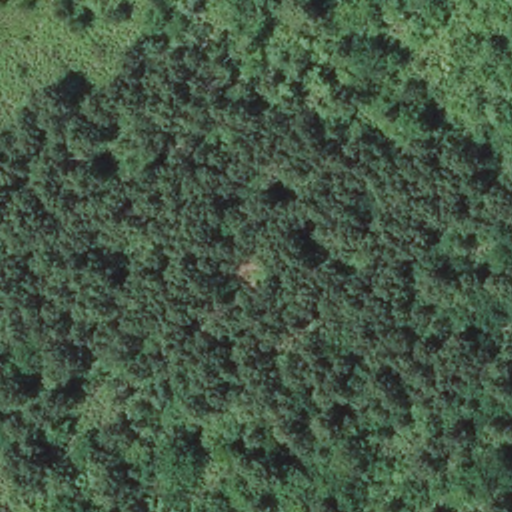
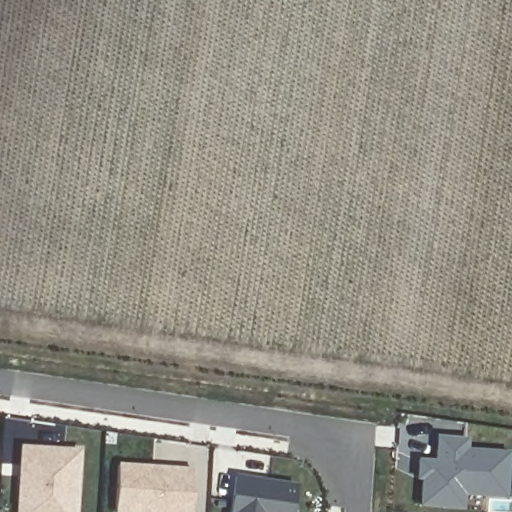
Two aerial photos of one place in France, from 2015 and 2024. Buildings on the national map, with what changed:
new [(441,507),(416,504),(418,478),(413,478),(415,460),(419,460),(431,461),(433,435),(462,437),(461,449),(505,453),(501,497),(459,494),(458,508),(441,507)]
new [(77,451),(73,512),(15,512),(15,502),(19,447),(77,451)]
new [(192,470),(189,512),(113,512),(115,465),(192,470)]
new [(293,485),(290,512),(227,512),(232,476),(293,485)]

